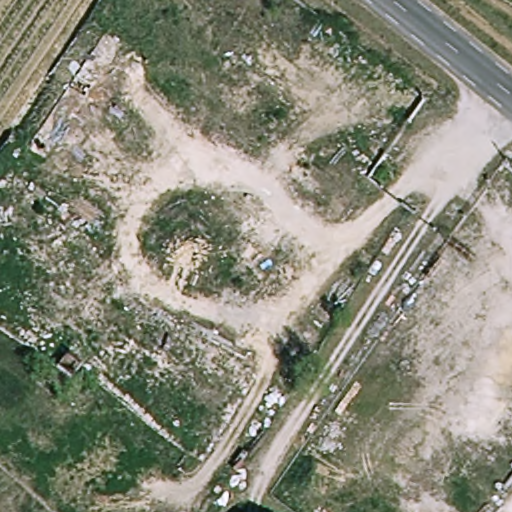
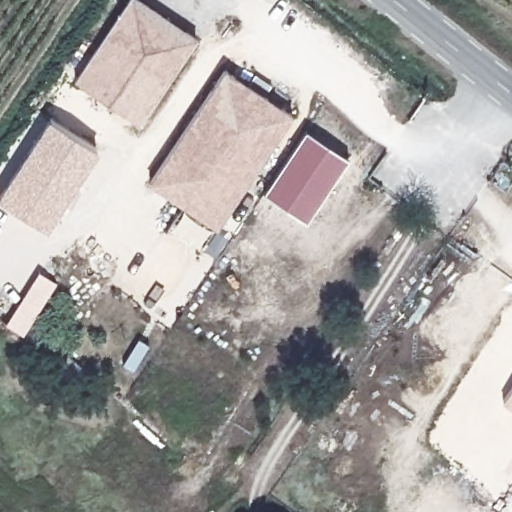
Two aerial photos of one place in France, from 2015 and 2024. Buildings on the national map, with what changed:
new [(140,0),(196,38),(141,123),(75,79),(128,0),(140,0)]
demolished [(64,92),(85,58),(110,74),(87,108),(64,92)]
new [(293,114),(217,228),(149,182),(224,68),(293,114)]
new [(47,228),(0,197),(0,191),(47,116),(99,148),(47,228)]
new [(346,158),(306,219),(265,192),(306,131),(346,158)]
new [(39,269),(58,281),(23,334),(5,322),(39,269)]
new [(502,400),(512,385),(512,407),(502,400)]

